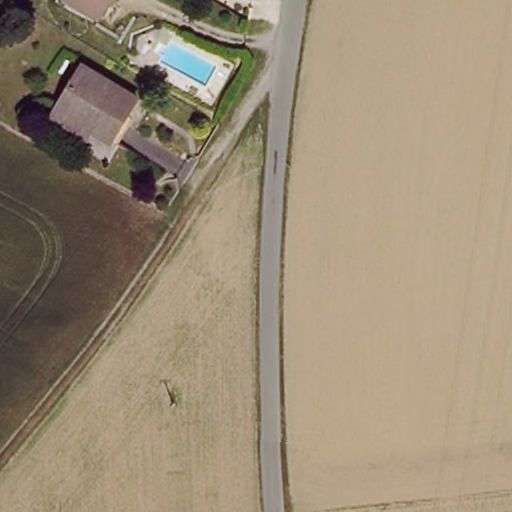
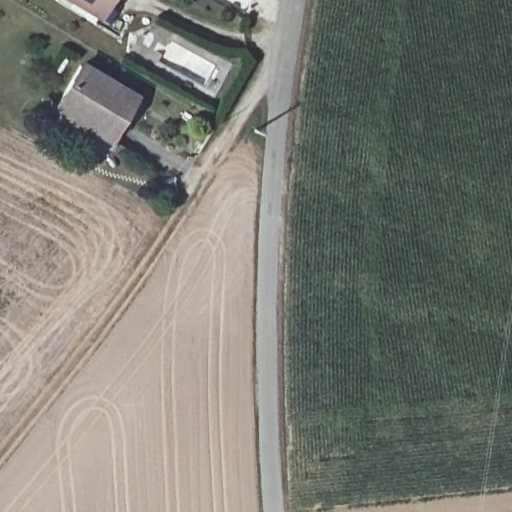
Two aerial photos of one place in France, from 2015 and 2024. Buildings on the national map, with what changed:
unchanged [(67,0),(101,0),(91,15),(67,0)]
unchanged [(84,133),(53,116),(79,65),(134,95),(112,135),(107,145),(84,133)]

